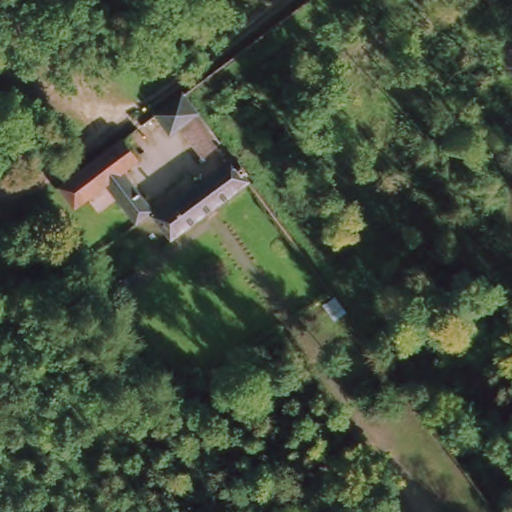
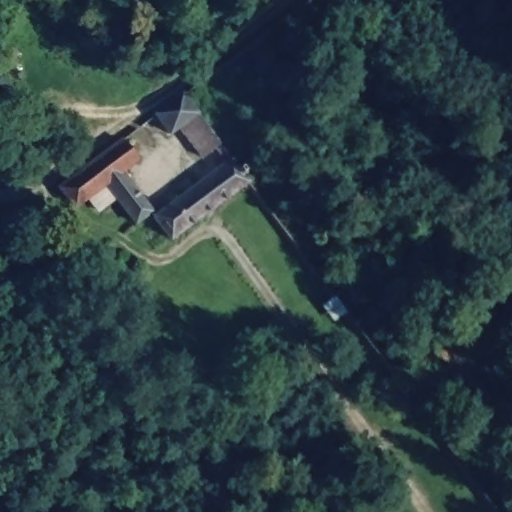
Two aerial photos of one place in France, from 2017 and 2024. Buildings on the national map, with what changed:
unchanged [(200,155),(189,139),(195,131),(184,115),(170,126),(156,109),(185,90),(222,140),(200,155)]
unchanged [(130,149),(120,156),(155,210),(147,215),(131,225),(96,171),(74,190),(60,172),(117,132),(130,149)]
unchanged [(232,159),(251,185),(154,246),(146,234),(155,227),(147,215),(155,210),(232,159)]

